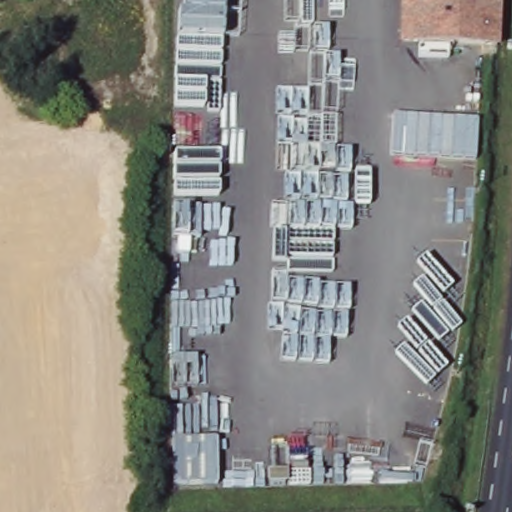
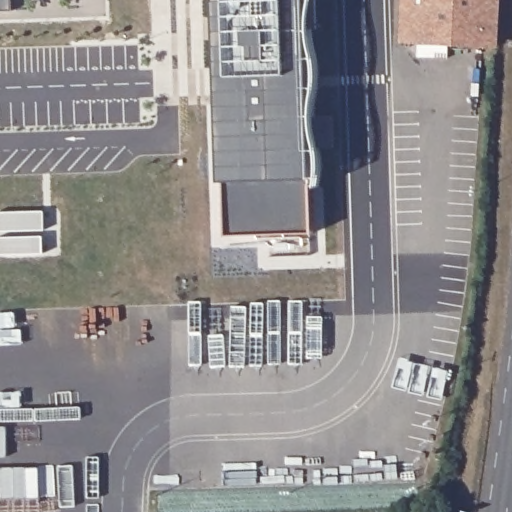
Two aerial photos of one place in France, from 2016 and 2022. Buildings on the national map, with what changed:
new [(12,9),(0,10),(0,0),(12,0),(12,9)]
new [(313,178),(310,177),(310,231),(229,235),(228,179),(221,180),(216,0),(308,0),(313,178)]
unchanged [(496,47),(401,40),(403,0),(497,0),(496,47)]
demolished [(80,52),(78,11),(93,10),(93,2),(139,1),(141,50),(80,52)]
demolished [(222,73),(222,57),(243,59),(243,75),(257,76),(254,225),(219,225),(219,241),(188,240),(188,223),(180,223),(182,72),(222,73)]

